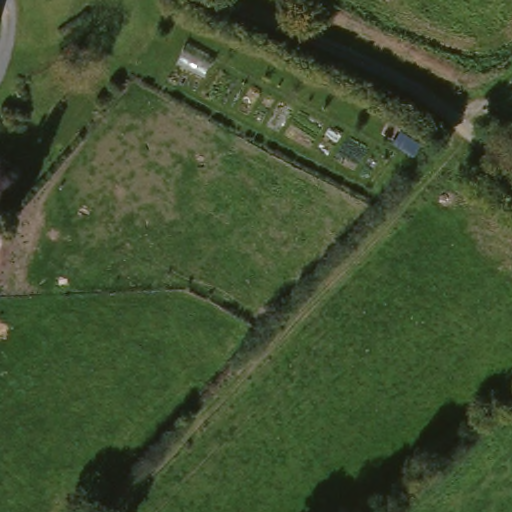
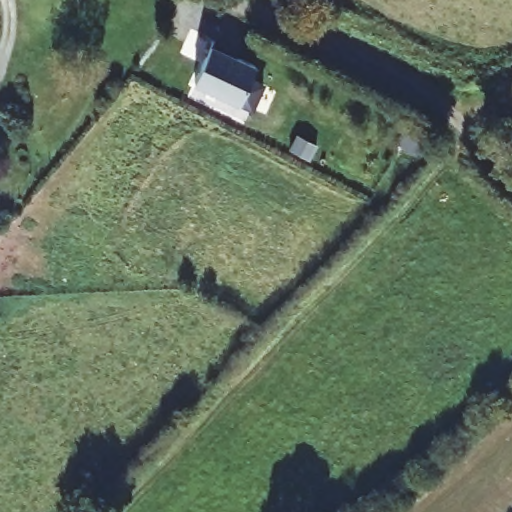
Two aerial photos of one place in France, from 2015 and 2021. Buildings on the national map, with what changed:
new [(216,44),(232,52),(230,57),(258,71),(251,84),(263,90),(252,113),(195,84),(216,44)]
unchanged [(4,241),(0,250),(0,239),(4,241)]

